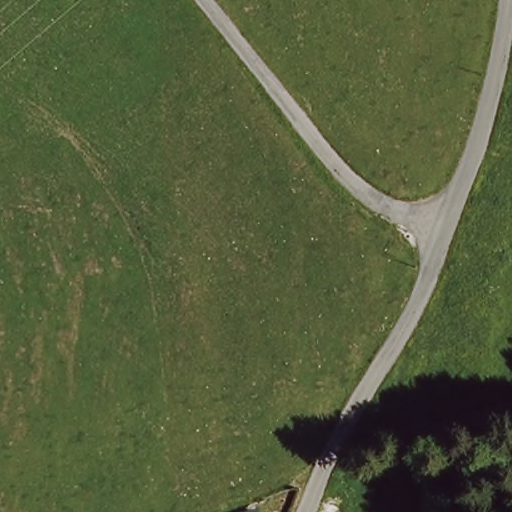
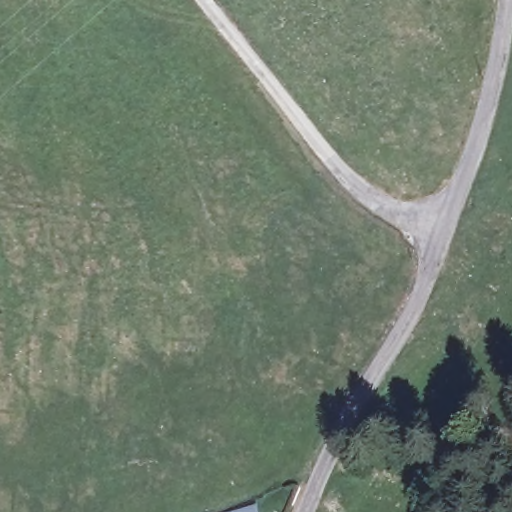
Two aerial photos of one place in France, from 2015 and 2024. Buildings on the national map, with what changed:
[]

